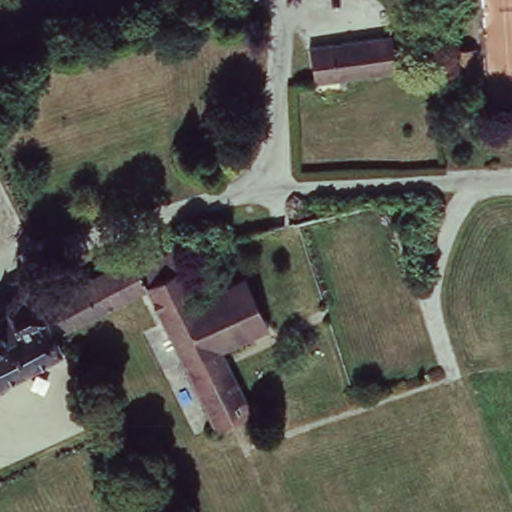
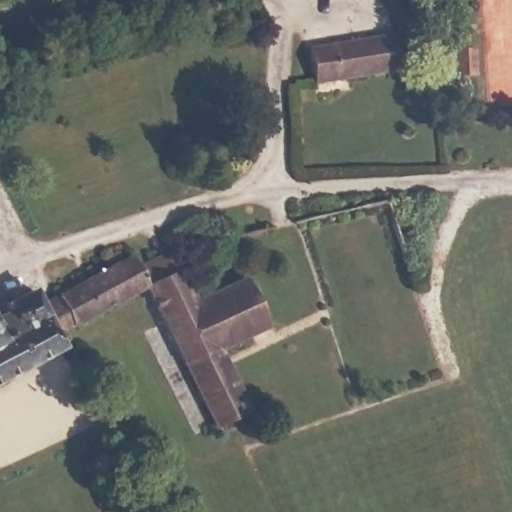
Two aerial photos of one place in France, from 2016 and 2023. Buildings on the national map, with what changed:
unchanged [(315,89),(310,47),(349,42),(390,38),(396,78),(348,85),(315,89)]
unchanged [(285,218),(320,211),(324,227),(308,232),(290,236),(285,218)]
unchanged [(170,247),(188,241),(189,247),(171,252),(170,247)]
unchanged [(133,258),(140,272),(174,257),(249,413),(215,428),(149,288),(74,327),(57,296),(133,258)]
unchanged [(195,300),(240,278),(263,328),(219,349),(195,300)]
unchanged [(5,302),(31,287),(62,343),(0,376),(0,314),(9,310),(5,302)]

